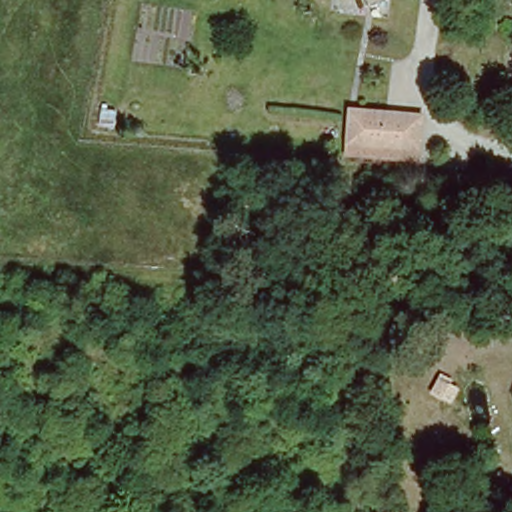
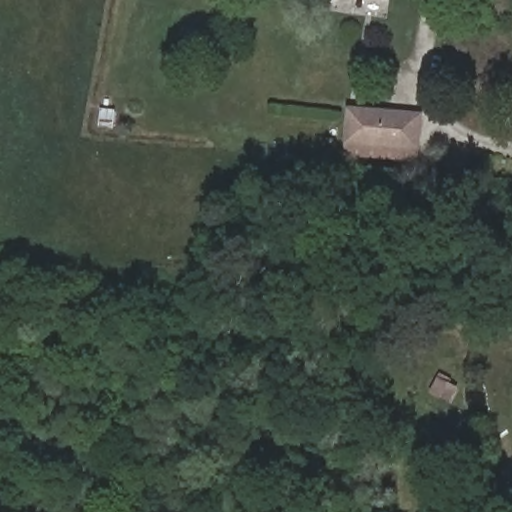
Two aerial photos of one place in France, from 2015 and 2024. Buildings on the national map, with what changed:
unchanged [(349,146),(352,116),(418,124),(413,154),(349,146)]

